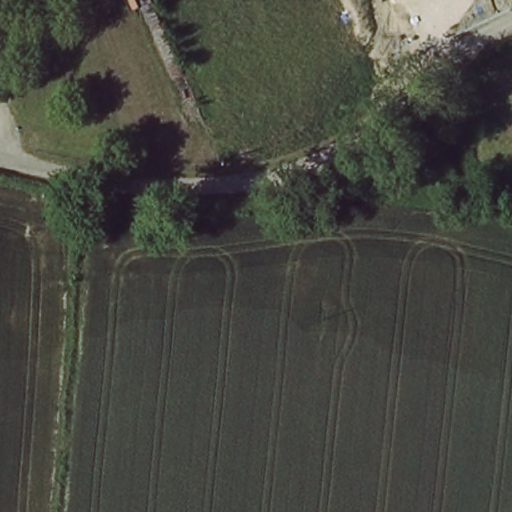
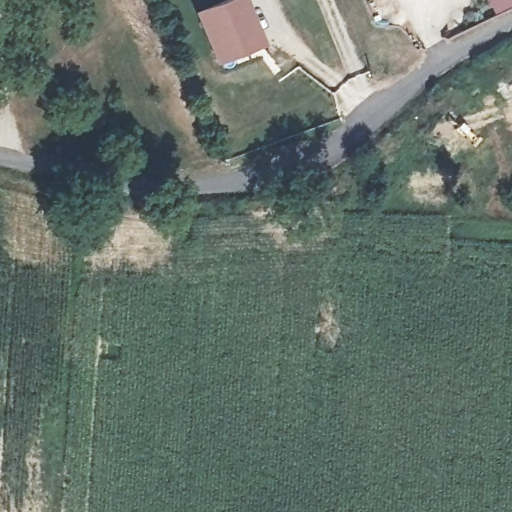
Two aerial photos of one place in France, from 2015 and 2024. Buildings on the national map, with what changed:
new [(206,17),(242,0),(244,0),(266,44),(228,62),(206,17)]
new [(496,14),(490,0),(512,0),(512,7),(496,14)]

